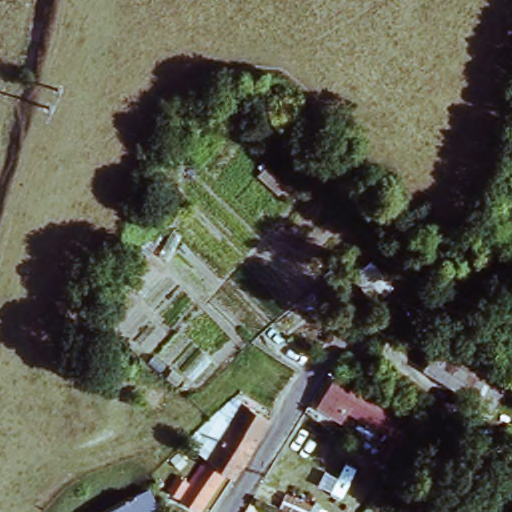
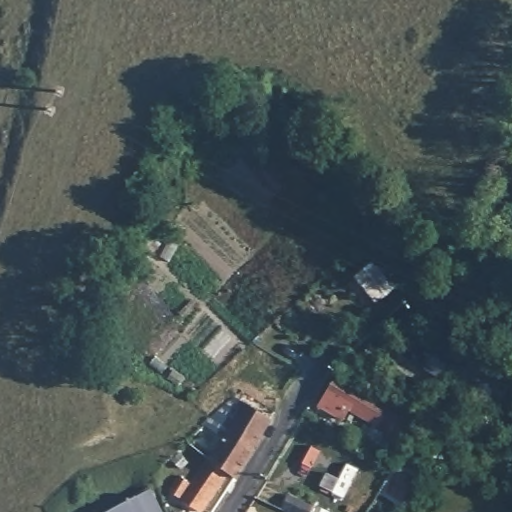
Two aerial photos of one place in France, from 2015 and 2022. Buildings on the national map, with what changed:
unchanged [(373,263),(395,288),(377,307),(351,275),(373,263)]
unchanged [(500,393),(487,412),(423,368),(442,339),(493,373),(488,380),(494,384),(491,388),(500,393)]
unchanged [(405,443),(387,431),(346,405),(338,416),(315,401),(333,373),(369,396),(397,414),(416,426),(410,437),(405,443)]
unchanged [(230,417),(236,409),(243,398),(271,415),(236,473),(230,469),(210,455),(187,436),(218,407),(230,417)]
unchanged [(429,416),(448,428),(437,446),(417,434),(429,416)]
unchanged [(201,508),(171,486),(181,472),(191,479),(210,455),(230,469),(201,508)]
unchanged [(162,512),(109,512),(150,490),(162,512)]

